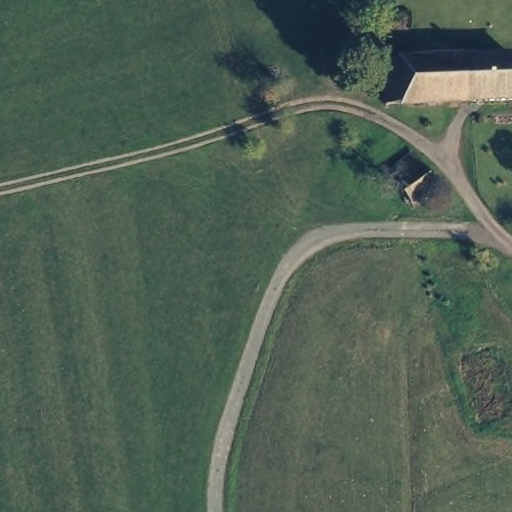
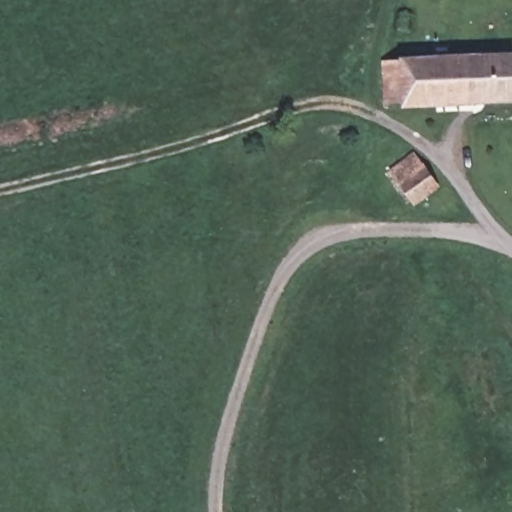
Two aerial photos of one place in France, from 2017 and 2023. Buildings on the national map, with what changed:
unchanged [(480,88),(444,89),(444,95),(393,96),(391,51),(512,47),(512,93),(481,94),(480,88)]
unchanged [(433,186),(409,204),(386,173),(412,154),(433,186)]

